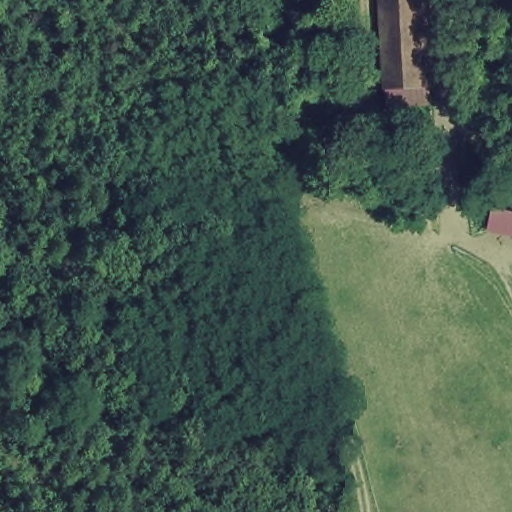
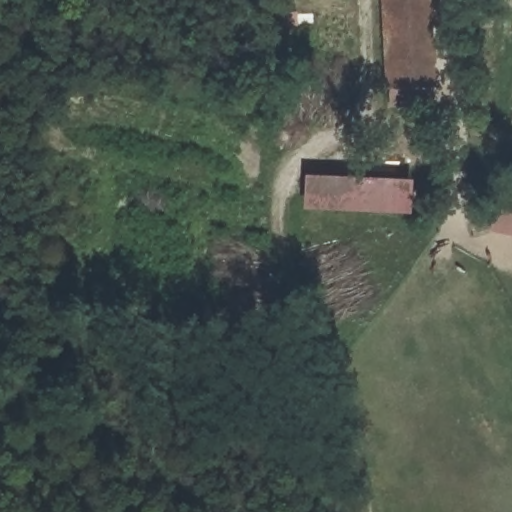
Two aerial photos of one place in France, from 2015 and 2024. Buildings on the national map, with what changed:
unchanged [(380,0),(432,0),(438,89),(386,92),(380,0)]
new [(415,180),(412,217),(301,211),(302,173),(415,180)]
new [(490,231),(494,205),(512,209),(512,236),(490,231)]

